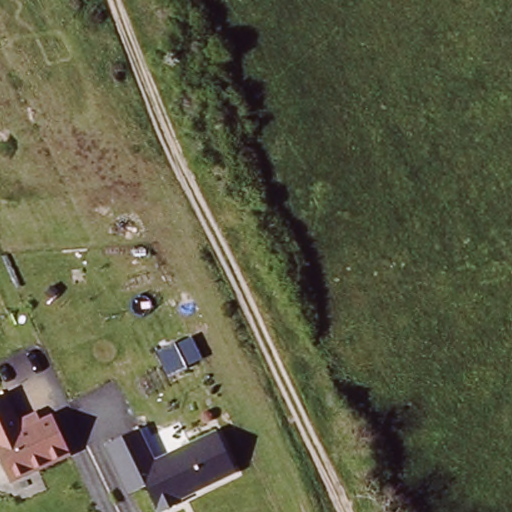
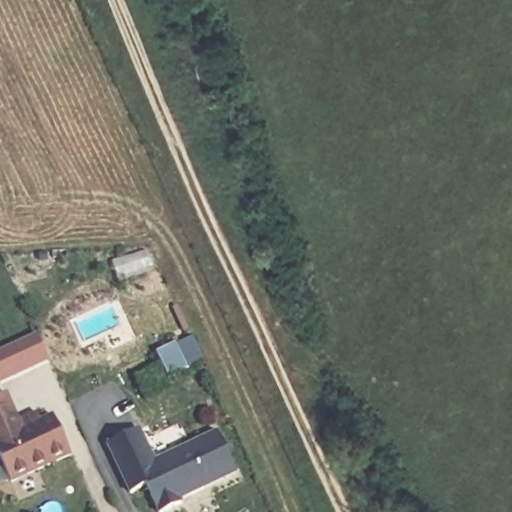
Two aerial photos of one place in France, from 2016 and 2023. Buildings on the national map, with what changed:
new [(48,360),(0,383),(0,350),(36,333),(48,360)]
unchanged [(14,422),(37,412),(40,419),(52,414),(71,455),(10,484),(0,463),(0,396),(1,395),(14,422)]
unchanged [(141,429),(155,460),(217,431),(237,473),(182,500),(183,502),(160,512),(156,512),(145,486),(127,495),(106,447),(141,429)]

